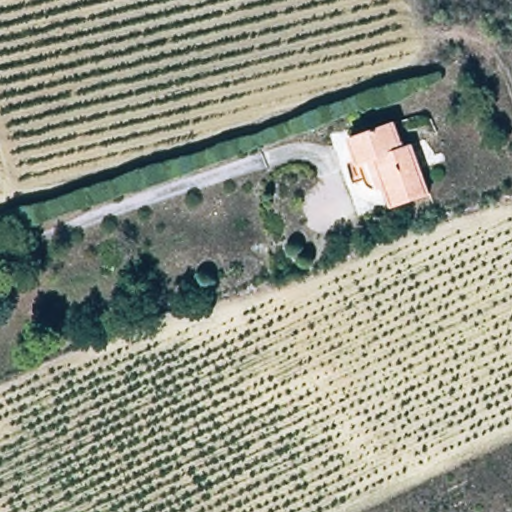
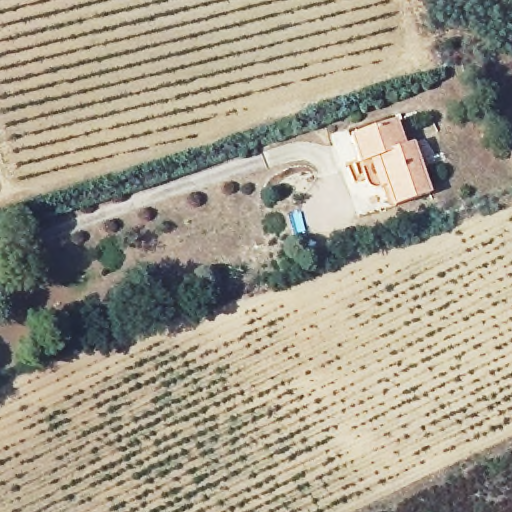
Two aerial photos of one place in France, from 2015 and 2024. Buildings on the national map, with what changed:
unchanged [(429,193),(392,206),(386,186),(378,188),(375,188),(370,187),(367,184),(365,179),(354,183),(348,166),(359,162),(351,139),(395,124),(403,147),(412,144),(429,193)]

